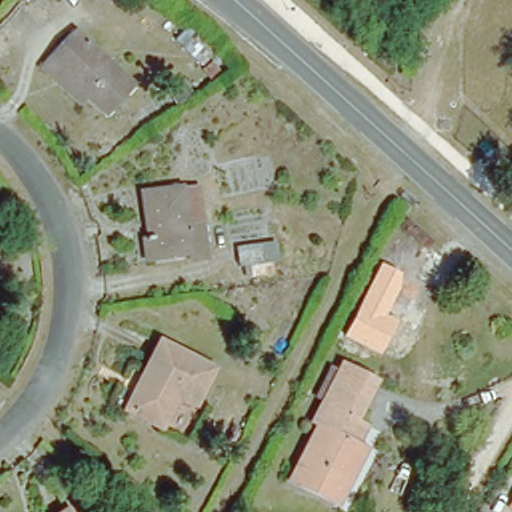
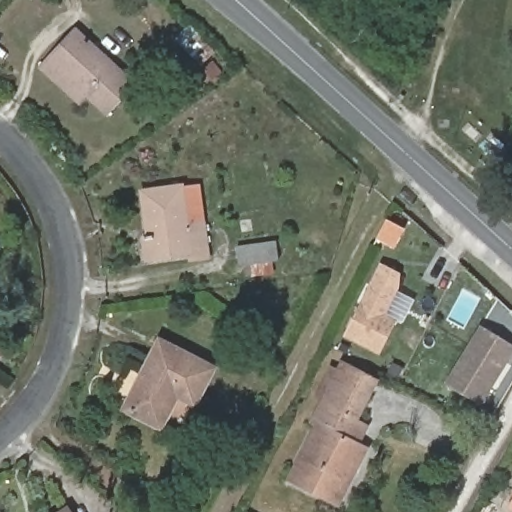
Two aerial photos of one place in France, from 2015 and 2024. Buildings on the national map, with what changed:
unchanged [(55,81),(41,69),(75,31),(138,86),(111,118),(89,99),(83,106),(55,81)]
unchanged [(142,226),(150,226),(147,191),(200,186),(208,263),(154,269),(147,269),(142,226)]
unchanged [(280,241),(281,260),(243,264),(241,246),(280,241)]
unchanged [(386,314),(399,321),(382,356),(344,338),(381,264),(401,273),(401,288),(386,314)]
new [(512,345),(512,354),(483,405),(448,384),(482,327),(512,345)]
unchanged [(123,400),(157,332),(215,362),(195,400),(174,390),(158,419),(123,400)]
unchanged [(321,392),(339,354),(374,371),(354,409),(321,392)]
unchanged [(313,418),(306,413),(317,390),(321,392),(354,409),(359,412),(348,435),(313,418)]
unchanged [(348,435),(362,442),(352,462),(345,459),(335,479),(342,483),(335,497),(285,471),(313,418),(348,435)]

